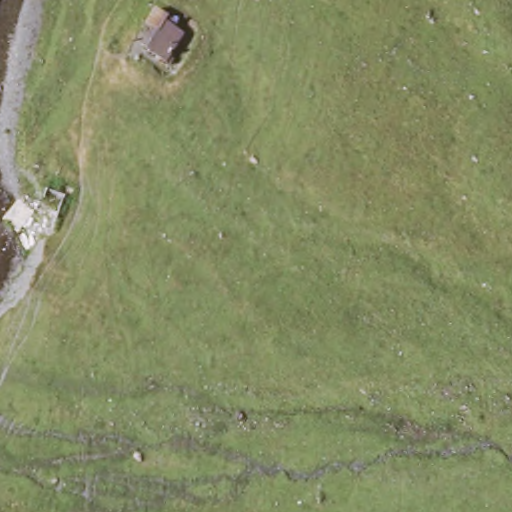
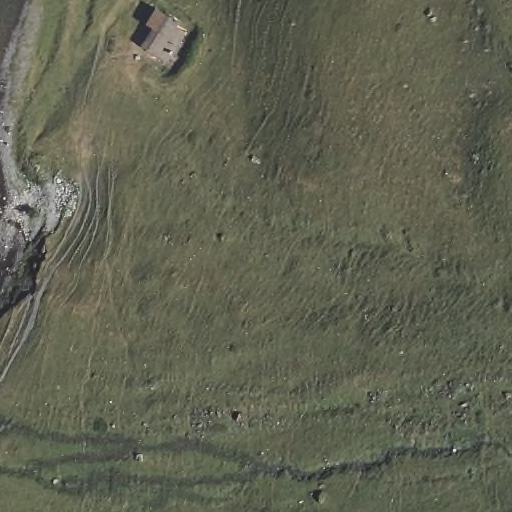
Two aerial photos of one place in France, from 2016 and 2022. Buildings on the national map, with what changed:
unchanged [(143,48),(164,7),(186,18),(165,57),(143,48)]

